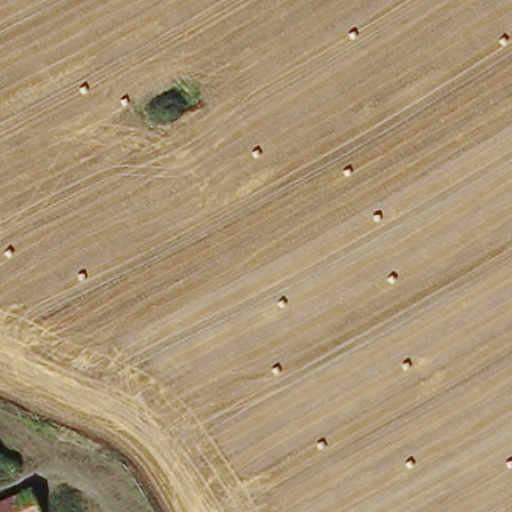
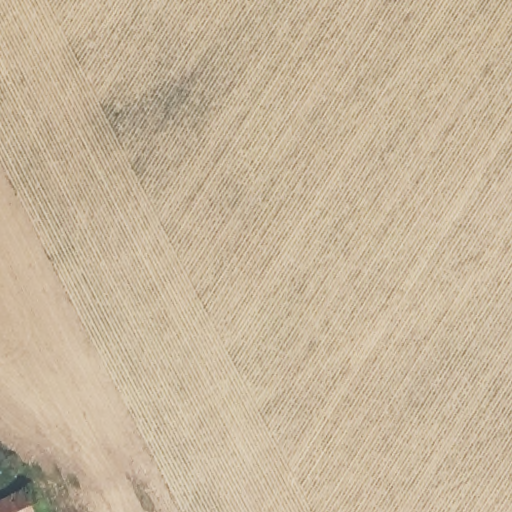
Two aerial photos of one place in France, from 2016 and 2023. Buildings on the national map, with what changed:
unchanged [(35,492),(42,512),(0,512),(0,508),(35,492)]

